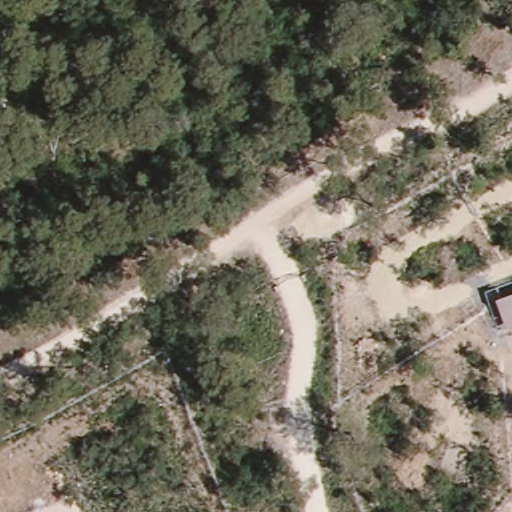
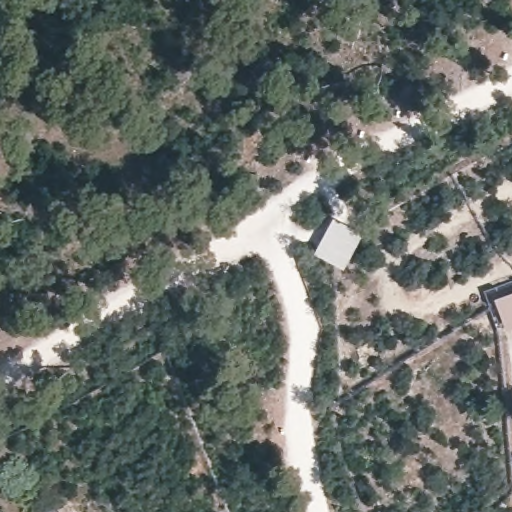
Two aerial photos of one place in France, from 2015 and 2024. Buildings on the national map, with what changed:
new [(364,235),(345,270),(314,254),(334,218),(364,235)]
unchanged [(506,331),(503,323),(498,325),(485,291),(512,282),(512,329),(506,331)]

